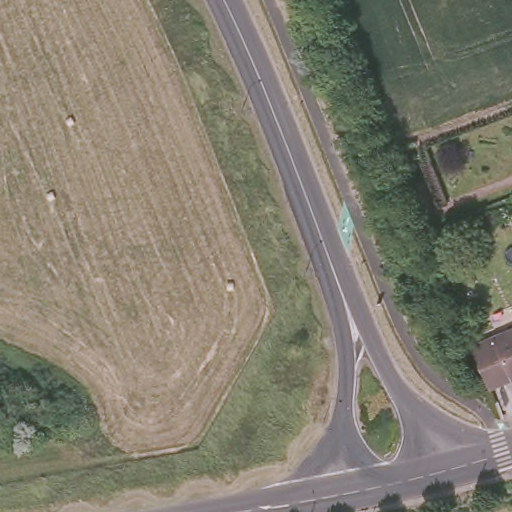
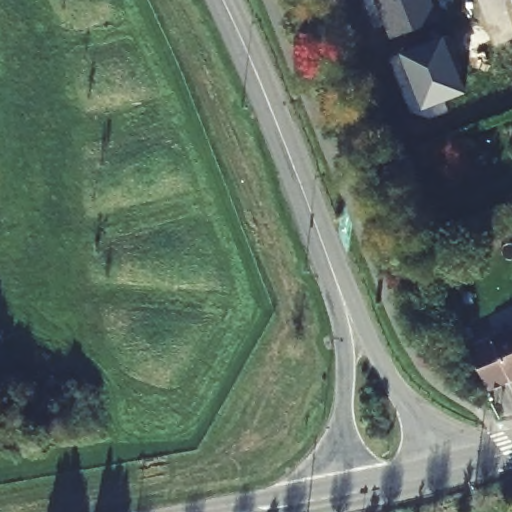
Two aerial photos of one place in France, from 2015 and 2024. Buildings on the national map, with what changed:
new [(392,39),(376,0),(435,0),(442,17),(392,39)]
new [(467,91),(423,109),(400,51),(445,35),(467,91)]
unchanged [(471,340),(470,338),(512,323),(512,376),(488,384),(471,340)]

